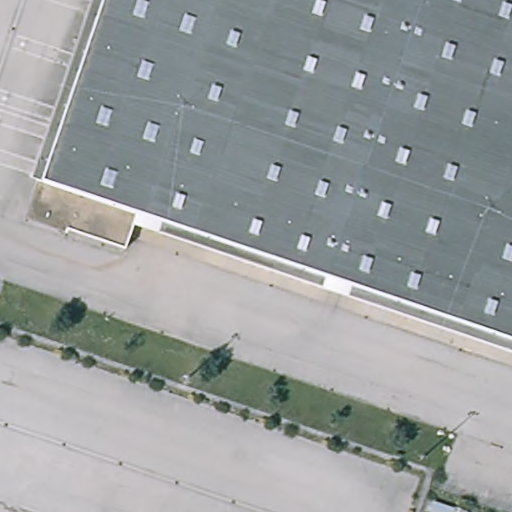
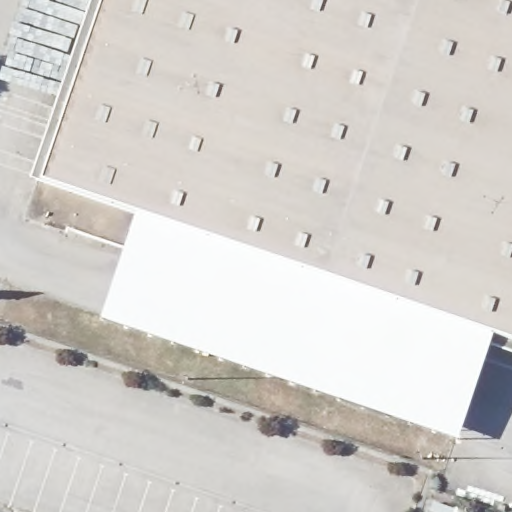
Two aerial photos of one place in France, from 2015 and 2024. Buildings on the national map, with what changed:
unchanged [(128,253),(35,219),(110,0),(512,0),(512,341),(143,216),(128,253)]
new [(102,320),(124,251),(128,253),(143,216),(512,341),(512,353),(492,346),(459,442),(102,320)]

